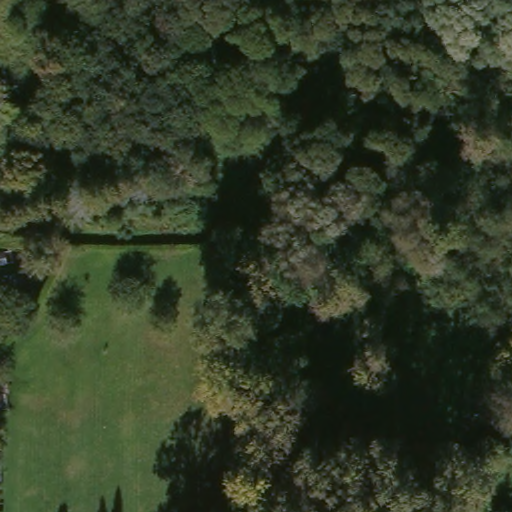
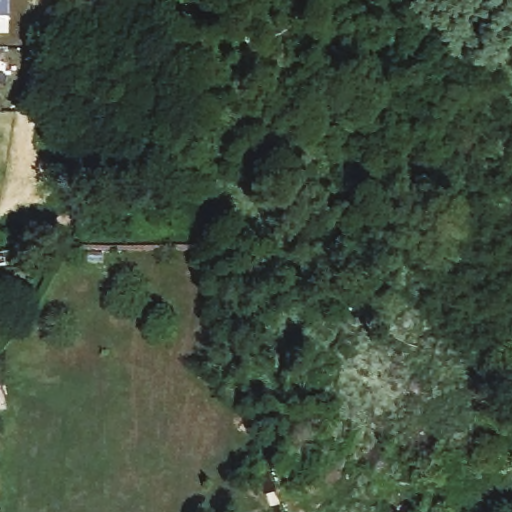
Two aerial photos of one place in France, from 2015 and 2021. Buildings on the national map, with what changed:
new [(10,19),(0,18),(0,0),(10,0),(10,19)]

